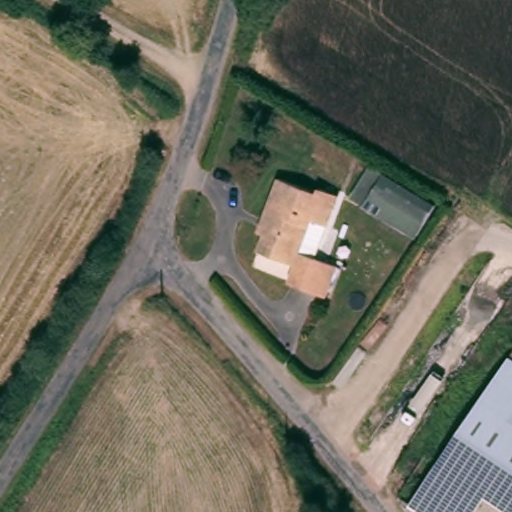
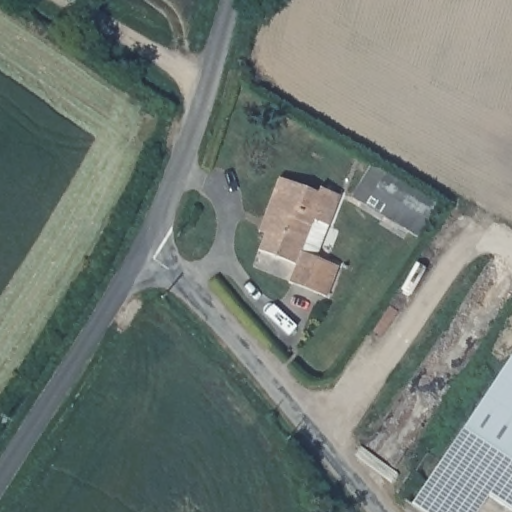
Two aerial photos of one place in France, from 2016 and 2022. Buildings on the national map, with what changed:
unchanged [(371,201),(391,166),(446,198),(424,234),(371,201)]
unchanged [(318,190),(321,182),(342,190),(319,257),(337,264),(325,296),(287,283),(295,262),(259,250),(264,235),(256,232),(263,212),(277,175),(318,190)]
unchanged [(474,512),(416,512),(406,506),(510,357),(512,353),(512,512),(505,512),(484,497),(474,512)]

